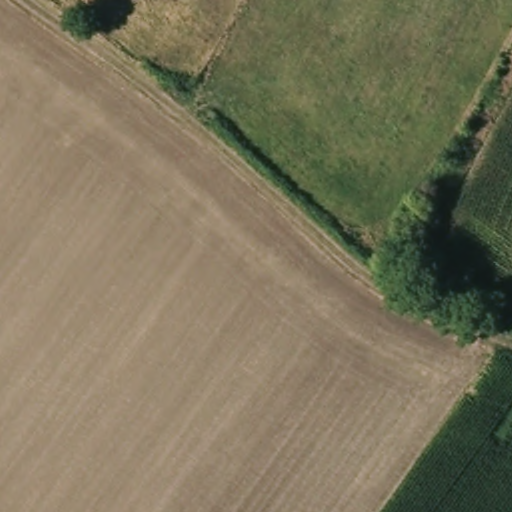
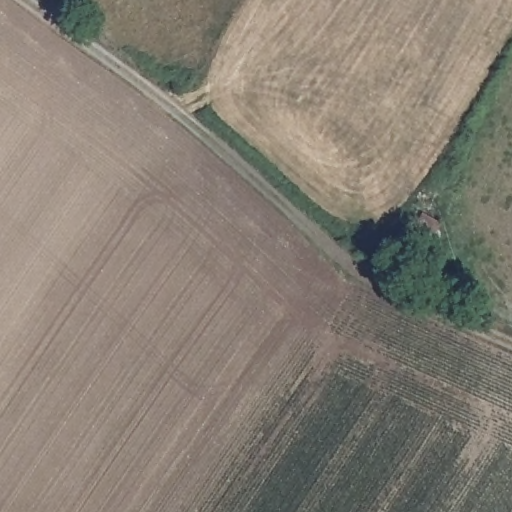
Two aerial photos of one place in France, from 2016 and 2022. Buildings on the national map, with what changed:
unchanged [(442,230),(419,283),(390,268),(417,219),(442,230)]

